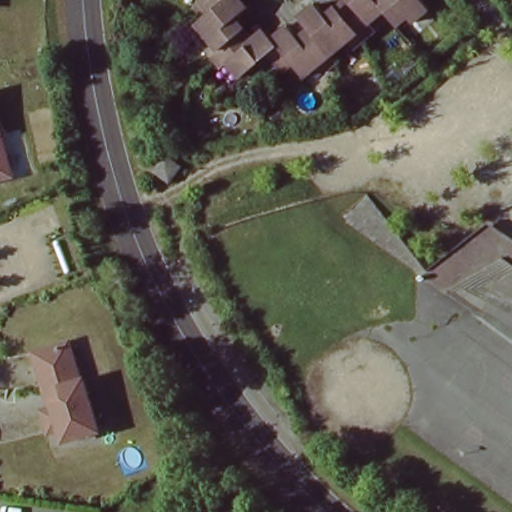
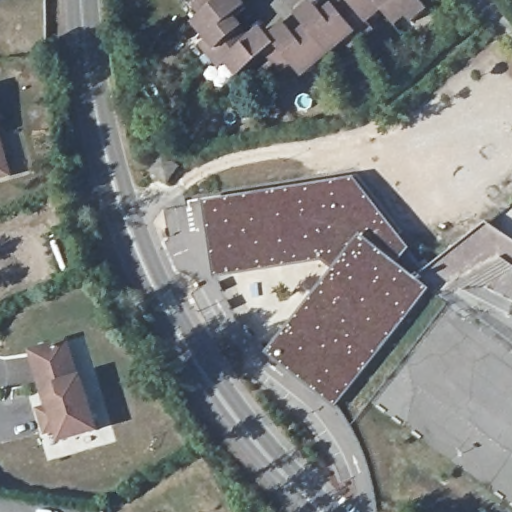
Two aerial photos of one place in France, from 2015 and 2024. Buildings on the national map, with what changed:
unchanged [(195,4),(199,0),(223,0),(205,15),(195,4)]
unchanged [(246,7),(231,20),(241,32),(214,53),(204,42),(210,38),(197,22),(205,15),(223,0),(239,0),(246,7)]
unchanged [(348,1),(348,0),(374,0),(382,9),(366,22),(372,30),(360,39),(337,10),(348,1)]
unchanged [(427,8),(411,21),(406,15),(395,24),(382,9),(374,0),(420,0),(427,8)]
unchanged [(349,48),(344,41),(329,53),(311,32),(298,16),(312,4),(325,19),(337,10),(360,39),(349,48)]
unchanged [(286,26),(299,41),(311,32),(329,53),(334,61),(323,70),(318,63),(302,75),(291,62),(280,70),(267,54),(277,45),(271,38),(286,26)]
unchanged [(241,75),(229,61),(223,65),(214,53),(241,32),(249,43),(265,31),(271,38),(277,45),(267,54),(241,75)]
unchanged [(13,176),(0,179),(0,127),(13,176)]
unchanged [(160,153),(179,165),(165,184),(148,172),(160,153)]
new [(352,177),(410,250),(423,271),(415,278),(429,290),(335,408),(271,354),(337,271),(326,262),(217,278),(204,202),(352,177)]
unchanged [(439,267),(435,270),(432,266),(485,225),(512,244),(512,248),(454,280),(439,267)]
unchanged [(72,343),(83,381),(87,380),(102,431),(67,441),(53,391),(49,392),(37,353),(72,343)]

